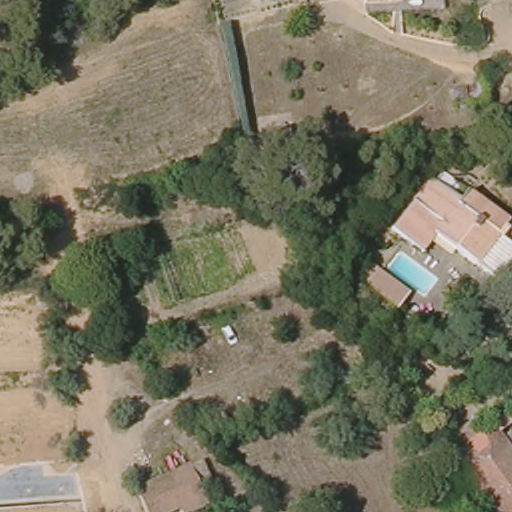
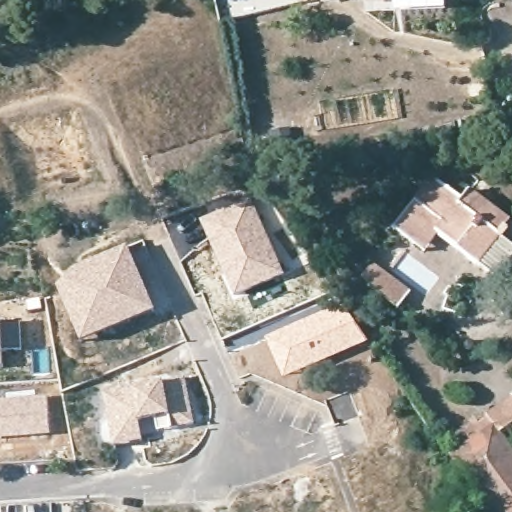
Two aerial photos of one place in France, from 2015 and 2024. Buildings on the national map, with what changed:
new [(284,129),(287,149),(259,152),(257,132),(284,129)]
unchanged [(412,246),(392,230),(434,177),(462,200),(468,192),(512,226),(512,280),(502,271),(493,281),(455,251),(435,235),(420,253),(412,246)]
new [(250,197),(285,274),(232,296),(198,217),(250,197)]
new [(80,266),(126,244),(155,311),(80,343),(56,285),(80,266)]
unchanged [(360,270),(372,254),(417,291),(401,310),(360,270)]
new [(342,302),(366,341),(281,379),(276,368),(263,338),(342,302)]
new [(1,325),(18,322),(20,350),(2,351),(2,367),(0,367),(0,325),(1,325)]
new [(182,377),(192,423),(178,426),(175,415),(171,416),(173,428),(155,431),(152,420),(141,422),(143,441),(112,446),(100,392),(165,380),(182,377)]
new [(47,395),(50,434),(0,438),(0,399),(47,395)]
unchanged [(497,430),(512,452),(512,512),(492,512),(450,455),(492,425),(497,430)]

